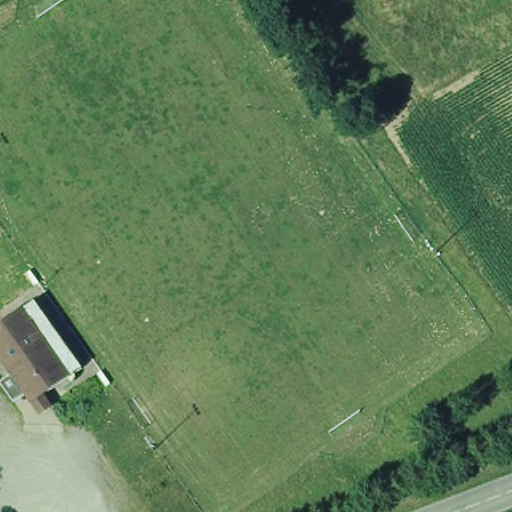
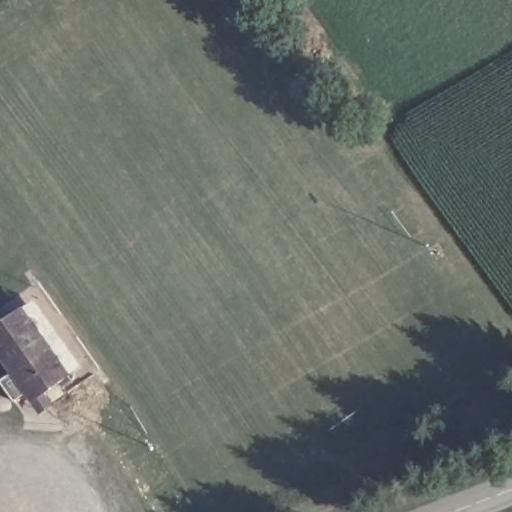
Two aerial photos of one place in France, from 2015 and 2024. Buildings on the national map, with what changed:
unchanged [(62,402),(27,422),(0,389),(0,380),(7,374),(2,366),(0,367),(0,321),(32,299),(83,366),(70,373),(74,379),(52,392),(62,402)]

